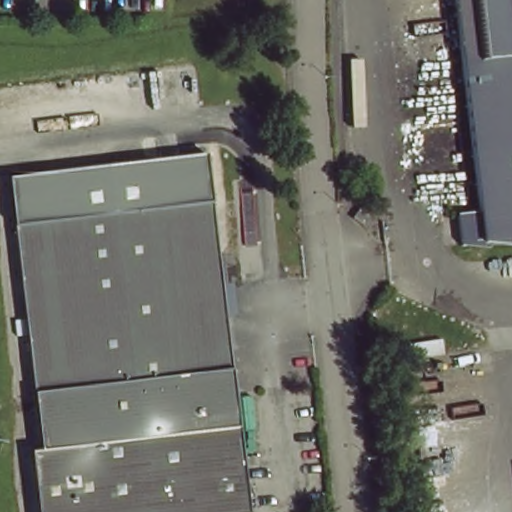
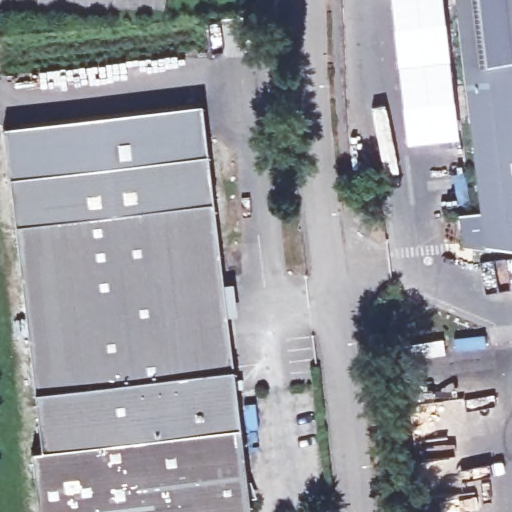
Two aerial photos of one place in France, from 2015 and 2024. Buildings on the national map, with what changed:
new [(405,143),(390,0),(443,0),(459,136),(405,143)]
unchanged [(485,249),(457,0),(512,0),(512,246),(485,249)]
new [(15,215),(4,126),(202,104),(212,194),(15,215)]
unchanged [(222,277),(248,507),(204,512),(38,512),(29,433),(39,432),(15,215),(212,194),(222,277)]
unchanged [(372,217),(365,224),(350,212),(342,204),(348,198),(372,217)]

